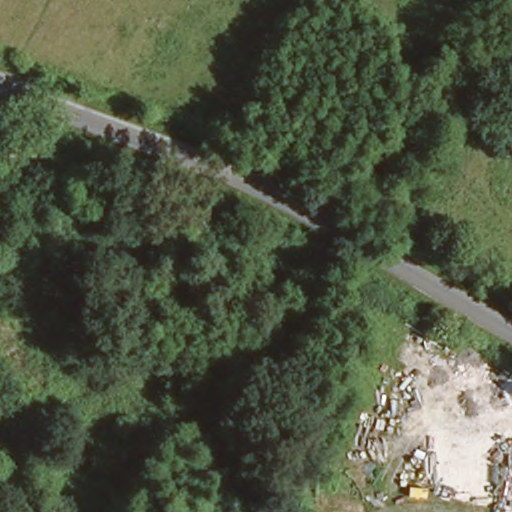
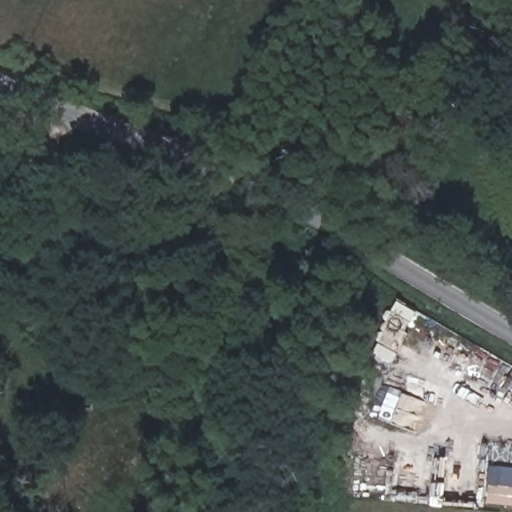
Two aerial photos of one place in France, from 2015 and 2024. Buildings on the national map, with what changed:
new [(491,466),(512,468),(512,505),(488,503),(491,466)]

